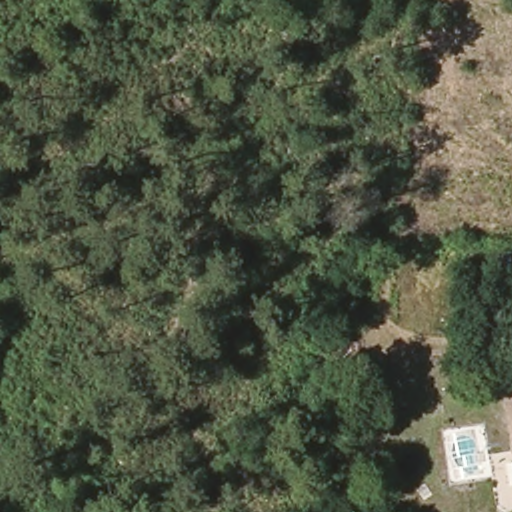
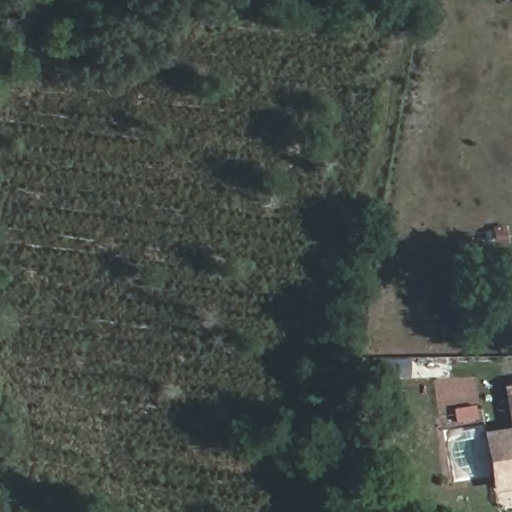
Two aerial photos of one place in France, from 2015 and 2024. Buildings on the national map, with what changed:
unchanged [(512,432),(512,429),(504,393),(512,391),(512,432)]
new [(512,432),(512,491),(493,494),(482,434),(512,429),(512,432)]

